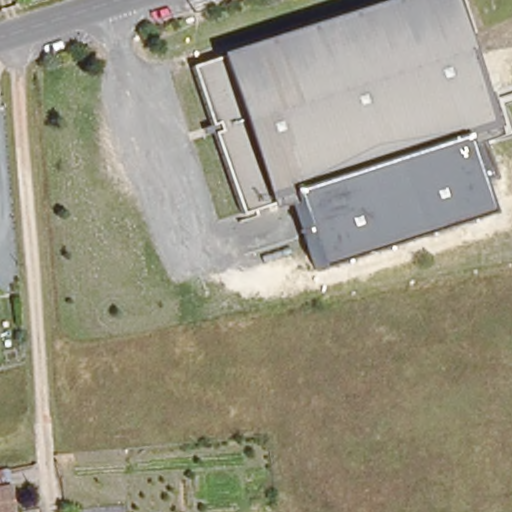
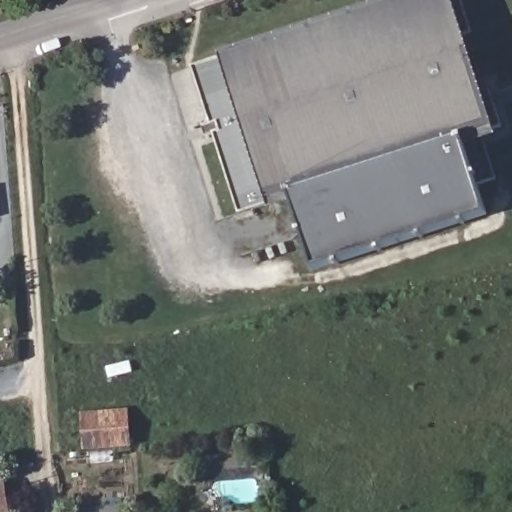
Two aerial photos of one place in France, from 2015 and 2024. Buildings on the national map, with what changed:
unchanged [(445,37),(466,92),(486,86),(499,125),(478,132),(477,127),(379,161),(367,15),(410,0),(456,0),(465,30),(445,37)]
unchanged [(287,192),(269,199),(271,204),(238,214),(186,67),(220,56),(222,64),(367,15),(379,161),(287,192)]
unchanged [(495,180),(477,190),(486,213),(315,270),(287,192),(379,161),(477,127),(478,132),(495,180)]
new [(84,452),(81,413),(130,409),(132,448),(84,452)]
unchanged [(12,512),(0,512),(0,472),(6,470),(12,512)]
unchanged [(126,512),(86,512),(126,508),(126,512)]

